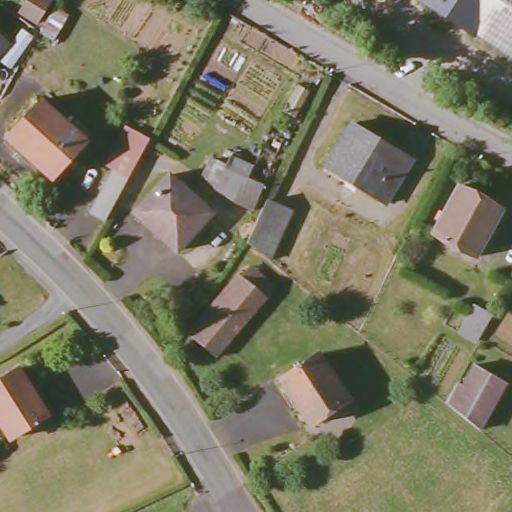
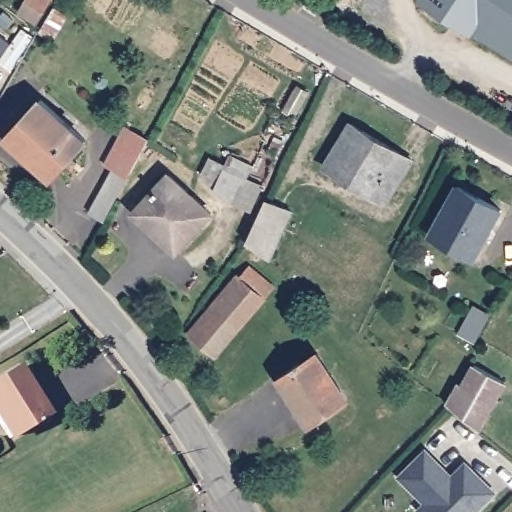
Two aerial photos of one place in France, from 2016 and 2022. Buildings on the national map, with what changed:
unchanged [(35,26),(18,15),(29,0),(54,0),(50,5),(35,26)]
unchanged [(326,0),(330,4),(319,19),(302,10),(314,0),(326,0)]
unchanged [(471,33),(423,0),(493,0),(474,29),(471,33)]
unchanged [(512,0),(512,54),(474,29),(493,0),(512,0)]
unchanged [(15,67),(4,58),(28,28),(38,36),(15,67)]
unchanged [(0,30),(14,41),(0,58),(0,30)]
unchanged [(290,116),(281,110),(293,89),(301,93),(290,116)]
unchanged [(82,140),(48,176),(6,137),(38,101),(82,140)]
unchanged [(418,159),(394,202),(331,169),(356,123),(418,159)]
unchanged [(92,208),(116,166),(107,161),(120,138),(127,125),(150,138),(141,152),(107,216),(92,208)]
unchanged [(255,209),(218,189),(231,166),(237,155),(258,166),(253,177),(268,184),(255,209)]
unchanged [(170,177),(211,218),(178,253),(135,214),(170,177)]
unchanged [(475,253),(432,232),(456,187),(496,207),(475,253)]
unchanged [(271,197),(293,210),(271,255),(250,239),(271,197)]
unchanged [(192,335),(240,273),(243,275),(251,266),(274,283),(266,293),(270,296),(251,320),(233,343),(222,358),(192,335)]
unchanged [(470,340),(455,332),(470,306),(485,313),(470,340)]
unchanged [(311,421),(281,377),(317,353),(347,398),(311,421)]
unchanged [(8,438),(0,425),(0,378),(19,366),(48,413),(8,438)]
unchanged [(452,386),(460,389),(472,367),(503,386),(479,429),(444,401),(452,386)]
new [(496,490),(475,512),(420,512),(418,510),(423,503),(398,476),(427,448),(453,474),(465,460),(496,490)]

